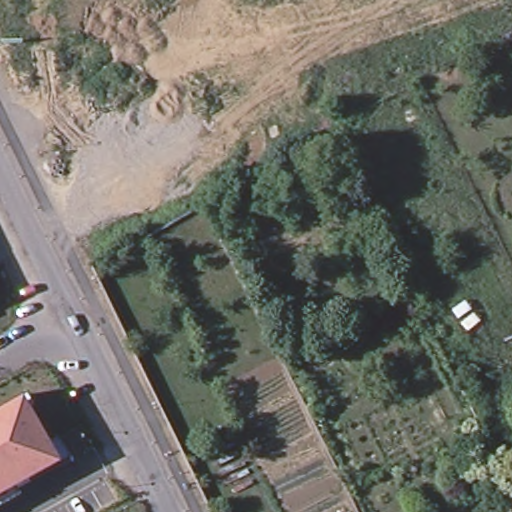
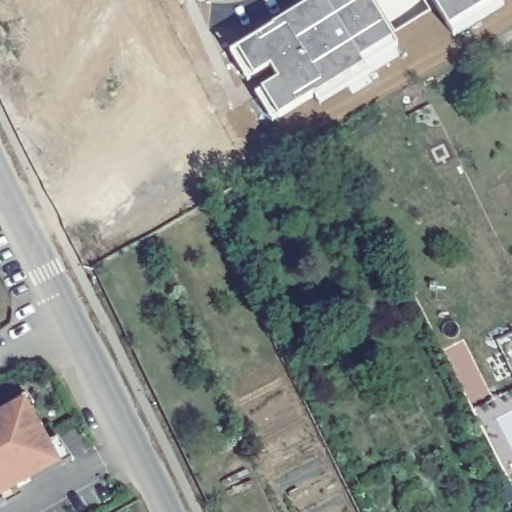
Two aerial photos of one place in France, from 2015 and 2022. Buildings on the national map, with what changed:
new [(307,0),(373,0),(399,41),(272,117),(255,90),(280,75),(271,63),(248,80),(229,50),(307,0)]
new [(448,21),(436,0),(485,0),(448,21)]
unchanged [(28,398),(64,465),(0,501),(0,414),(28,398)]
unchanged [(511,490),(512,491),(512,512),(510,512),(501,495),(511,490)]

